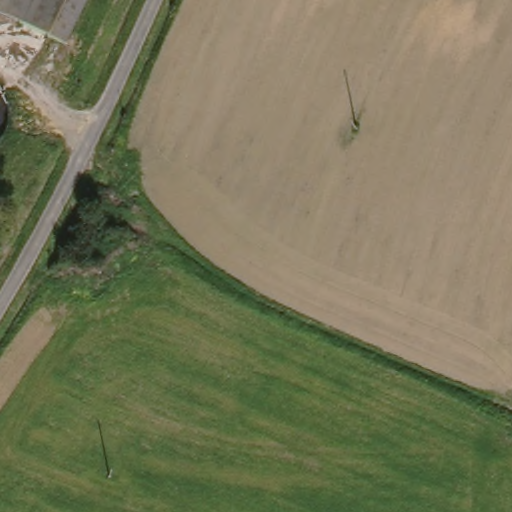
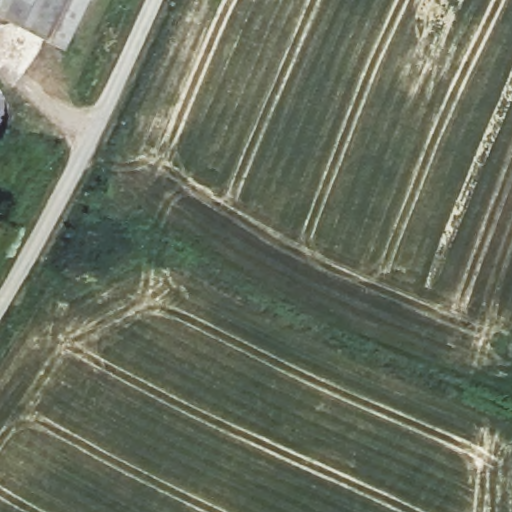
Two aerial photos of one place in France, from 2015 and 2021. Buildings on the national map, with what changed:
unchanged [(62,44),(0,14),(0,0),(84,0),(62,44)]

